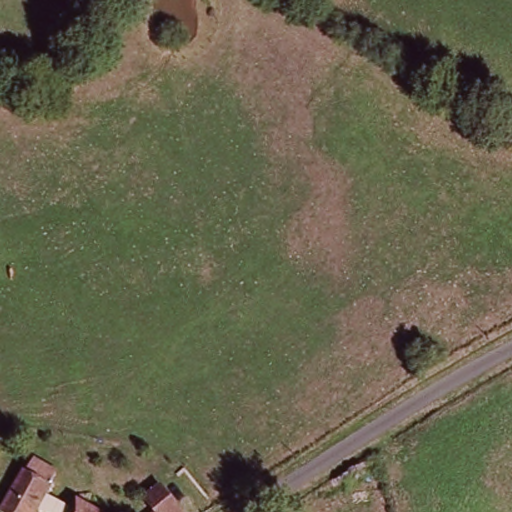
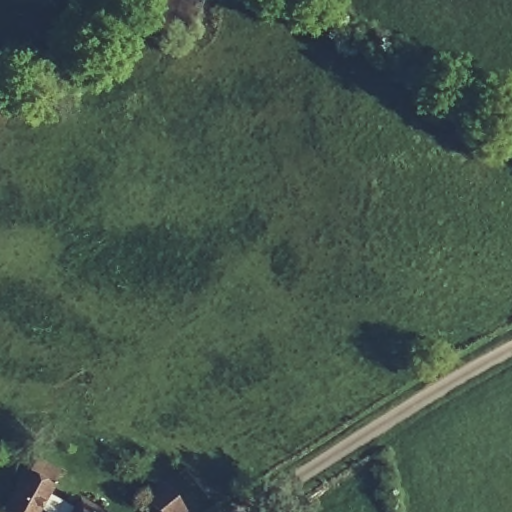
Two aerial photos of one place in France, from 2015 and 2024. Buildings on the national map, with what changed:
unchanged [(24,475),(29,478),(35,466),(57,477),(51,489),(39,512),(5,512),(24,475)]
unchanged [(149,500),(165,488),(184,512),(158,512),(149,500)]
unchanged [(78,499),(101,512),(71,512),(78,499)]

